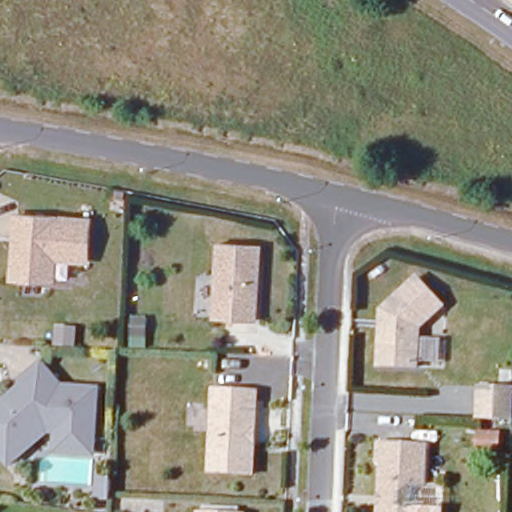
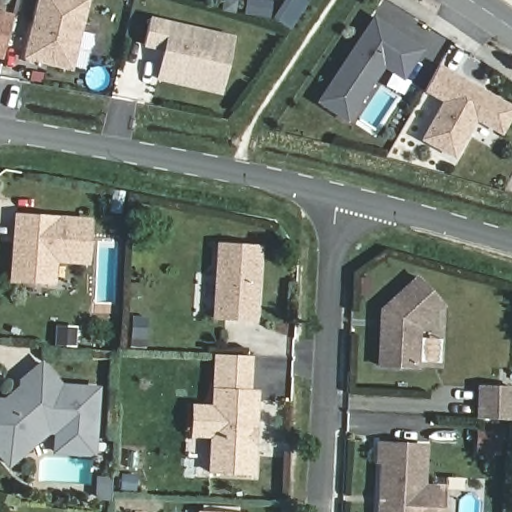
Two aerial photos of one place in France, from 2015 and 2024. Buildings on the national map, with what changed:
new [(87,0),(70,69),(24,57),(38,0),(87,0)]
new [(0,13),(11,16),(9,27),(1,57),(0,57),(0,13)]
new [(197,86),(155,77),(161,49),(141,44),(146,17),(230,35),(222,70),(217,91),(197,86)]
new [(370,17),(382,25),(418,48),(400,76),(380,64),(343,119),(315,100),(367,20),(370,17)]
new [(442,100),(422,89),(436,65),(512,108),(512,109),(499,132),(473,117),(452,155),(421,139),(442,100)]
unchanged [(89,220),(86,260),(53,258),(51,281),(11,278),(16,215),(89,220)]
unchanged [(213,313),(217,239),(259,242),(257,267),(257,275),(254,316),(213,313)]
unchanged [(441,302),(418,322),(416,363),(378,361),(380,305),(416,273),(441,302)]
unchanged [(140,323),(139,342),(124,341),(125,322),(140,323)]
unchanged [(53,432),(40,431),(1,460),(0,458),(0,391),(18,378),(40,361),(58,385),(95,388),(91,434),(90,455),(52,451),(53,432)]
unchanged [(255,387),(250,470),(208,467),(212,384),(255,387)]
unchanged [(512,386),(512,402),(511,418),(508,417),(476,416),(478,384),(512,386)]
unchanged [(492,440),(490,460),(471,459),(472,438),(492,440)]
unchanged [(380,458),(376,457),(376,441),(422,443),(417,512),(376,512),(377,501),(377,493),(380,458)]
unchanged [(102,498),(102,503),(90,502),(90,484),(103,485),(102,498)]

